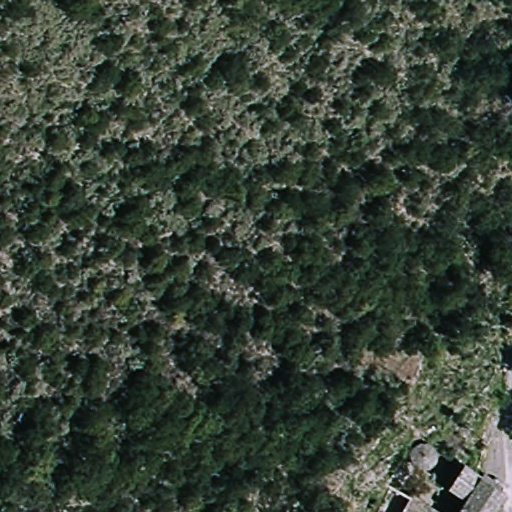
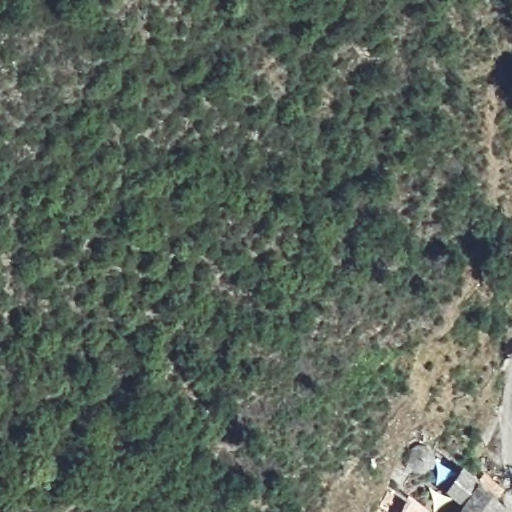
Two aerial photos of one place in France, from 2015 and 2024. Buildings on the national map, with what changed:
unchanged [(467,497),(453,488),(469,462),(510,494),(494,512),(460,512),(467,497)]
unchanged [(413,492),(447,512),(400,512),(413,492)]

